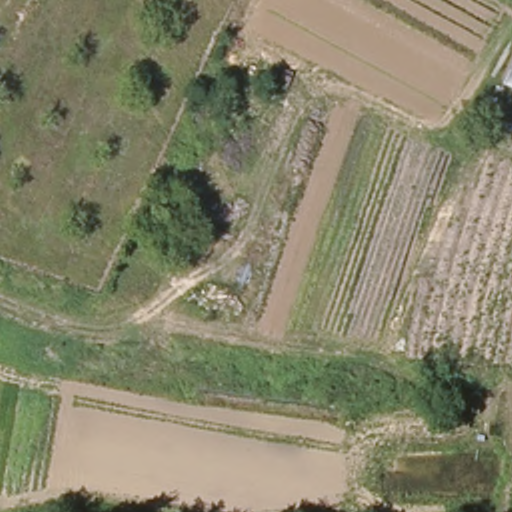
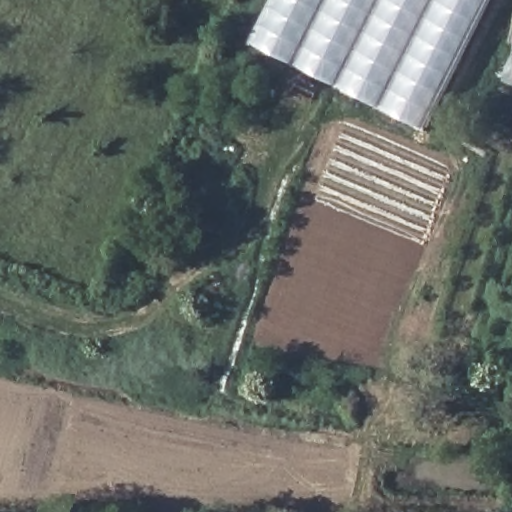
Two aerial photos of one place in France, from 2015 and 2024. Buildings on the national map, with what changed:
new [(255,45),(278,0),(493,0),(430,128),(255,45)]

